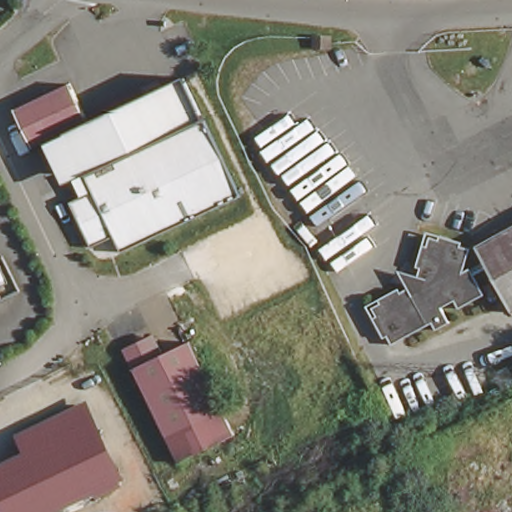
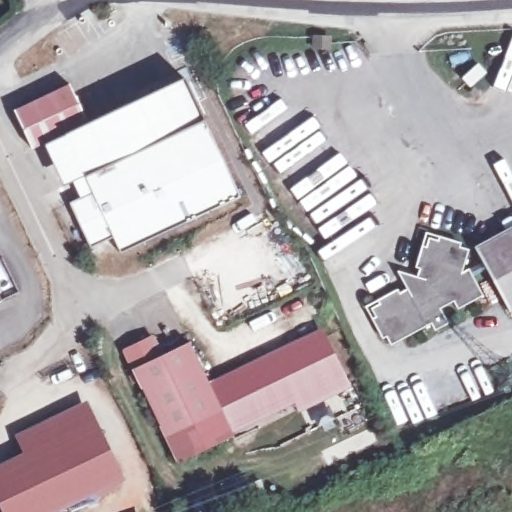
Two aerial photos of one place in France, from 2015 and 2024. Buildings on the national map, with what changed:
unchanged [(237,191),(126,249),(118,233),(93,246),(75,203),(85,198),(78,182),(68,189),(44,142),(88,120),(186,74),(237,191)]
unchanged [(70,85),(88,120),(44,142),(33,147),(16,112),(70,85)]
unchanged [(432,234),(443,237),(444,234),(446,234),(464,240),(464,244),(473,247),(464,270),(465,270),(484,261),(476,247),(512,228),(512,312),(489,268),(477,273),(487,292),(478,296),(461,305),(457,297),(443,302),(451,318),(438,325),(436,320),(394,341),(389,332),(384,335),(373,312),(378,311),(373,302),(381,298),(379,295),(396,287),(397,290),(409,283),(413,291),(422,287),(425,274),(419,272),(422,263),(417,262),(423,241),(429,242),(432,234)]
new [(322,328),(350,387),(299,412),(293,402),(229,432),(207,382),(322,328)]
unchanged [(175,463),(125,350),(154,337),(162,356),(190,343),(207,382),(229,432),(232,438),(175,463)]
unchanged [(19,444),(82,413),(117,486),(63,512),(52,512),(28,462),(19,444)]
unchanged [(28,462),(52,512),(8,512),(0,496),(0,476),(28,462)]

